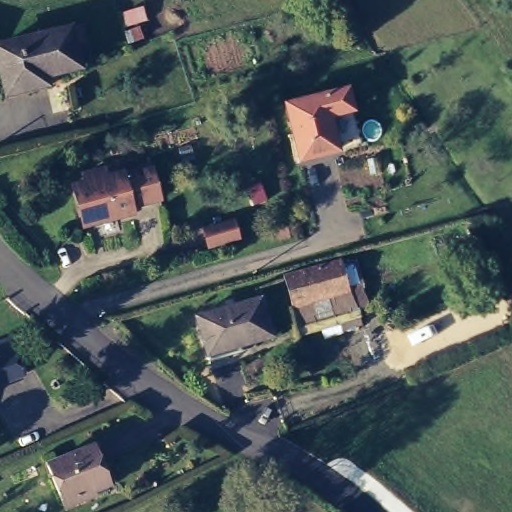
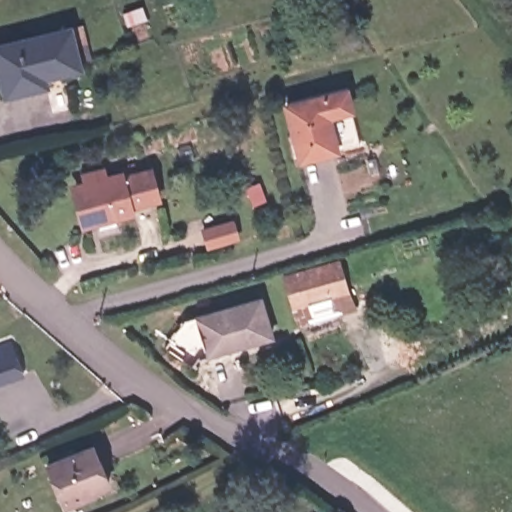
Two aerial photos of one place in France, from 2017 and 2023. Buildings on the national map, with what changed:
unchanged [(3,42),(77,23),(86,59),(49,68),(52,80),(18,88),(3,42)]
unchanged [(348,79),(353,113),(334,117),(342,156),(304,172),(281,99),(348,79)]
unchanged [(75,184),(84,182),(82,172),(101,168),(102,178),(117,174),(118,175),(124,174),(122,164),(134,162),(137,171),(147,169),(154,200),(125,206),(126,211),(83,221),(75,184)]
unchanged [(341,272),(347,297),(297,310),(291,285),(341,272)]
unchanged [(192,319),(257,301),(270,336),(203,354),(192,319)]
unchanged [(0,344),(7,340),(21,372),(0,381),(0,344)]
unchanged [(64,502),(62,498),(49,466),(94,448),(107,479),(91,486),(92,490),(64,502)]

